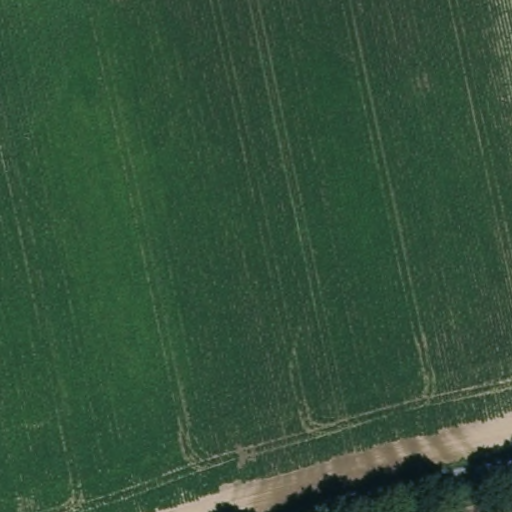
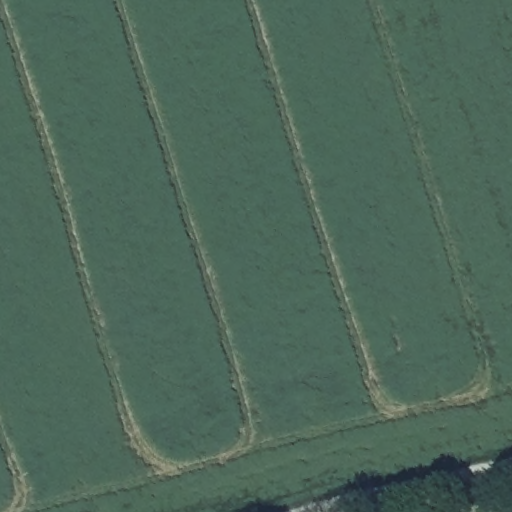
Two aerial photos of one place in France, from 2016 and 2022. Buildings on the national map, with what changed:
[]

